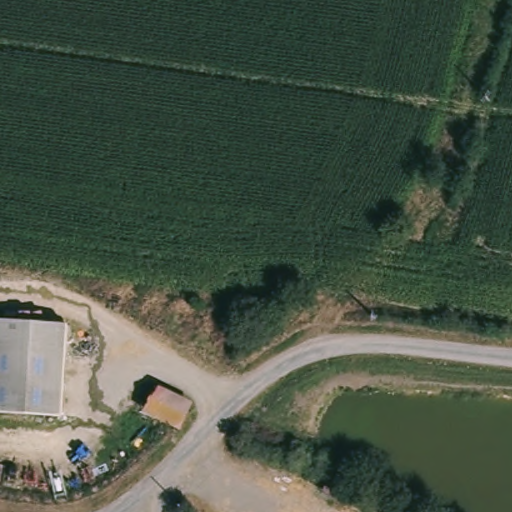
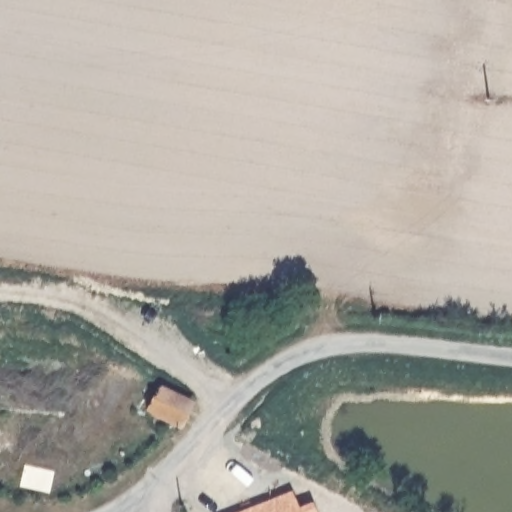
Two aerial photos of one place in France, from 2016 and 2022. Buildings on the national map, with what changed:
demolished [(60,416),(0,414),(0,320),(65,324),(60,416)]
unchanged [(190,397),(179,419),(150,407),(157,391),(161,383),(187,393),(190,397)]

